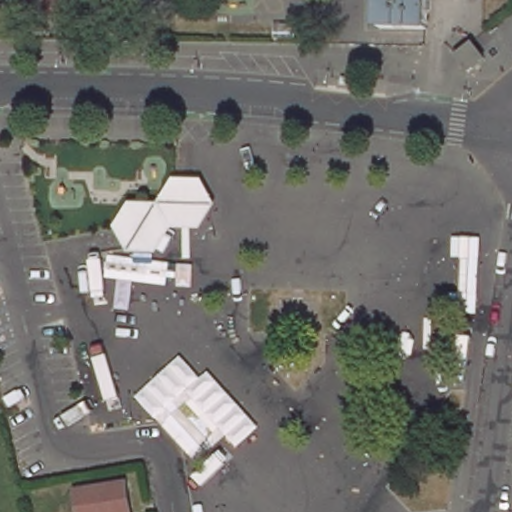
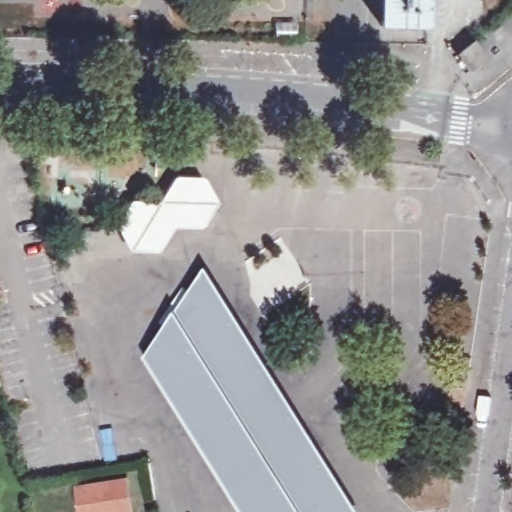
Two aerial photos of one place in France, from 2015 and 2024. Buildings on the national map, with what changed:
unchanged [(389,0),(435,0),(433,28),(388,25),(389,0)]
unchanged [(475,41),(488,55),(472,69),(459,54),(475,41)]
unchanged [(122,230),(140,207),(166,208),(185,189),(202,189),(221,209),(205,227),(179,227),(160,248),(138,248),(122,230)]
new [(175,316),(206,271),(357,512),(240,512),(145,360),(175,316)]
unchanged [(130,483),(135,512),(87,512),(83,490),(130,483)]

